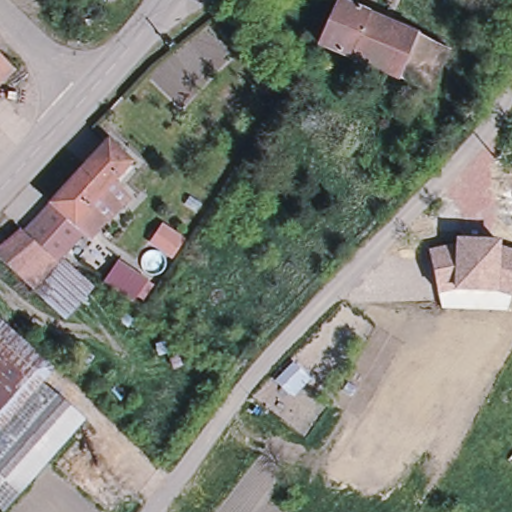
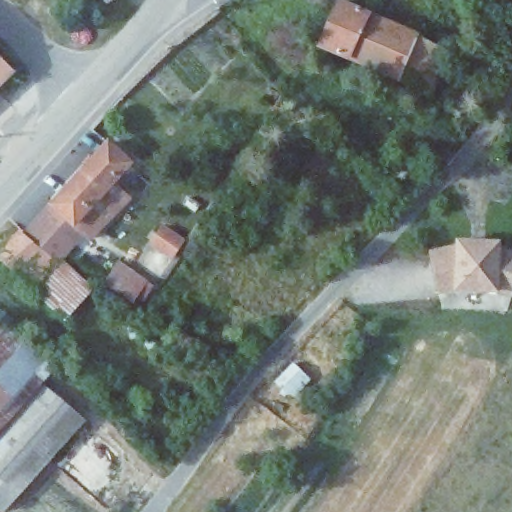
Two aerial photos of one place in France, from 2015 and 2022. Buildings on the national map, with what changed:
unchanged [(370,23),(352,66),(324,54),(342,11),(370,23)]
unchanged [(421,45),(402,88),(352,66),(370,23),(421,45)]
unchanged [(452,58),(435,101),(402,88),(421,45),(452,58)]
unchanged [(0,75),(0,61),(7,69),(0,75)]
unchanged [(506,151),(512,135),(512,153),(506,151)]
unchanged [(62,207),(119,146),(122,150),(141,167),(121,189),(137,204),(97,247),(92,242),(76,258),(68,267),(32,236),(35,232),(37,234),(62,207)]
unchanged [(32,236),(68,267),(40,298),(5,260),(32,236)]
unchanged [(501,240),(501,246),(512,249),(512,298),(494,292),(461,290),(437,295),(427,251),(456,244),(455,237),(501,240)]
unchanged [(120,261),(149,282),(133,303),(105,282),(120,261)]
unchanged [(68,267),(95,296),(68,328),(40,298),(68,267)]
unchanged [(35,379),(43,386),(0,435),(0,325),(46,367),(35,379)]
unchanged [(309,380),(297,392),(292,398),(275,381),(293,364),(309,380)]
unchanged [(85,424),(36,480),(0,446),(0,435),(43,386),(85,424)]
unchanged [(7,512),(0,512),(0,446),(36,480),(7,512)]

